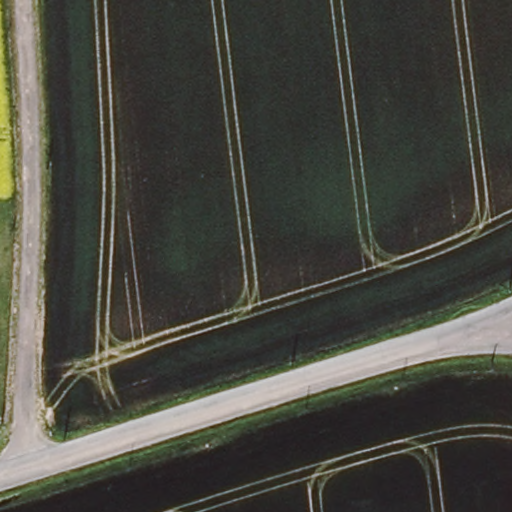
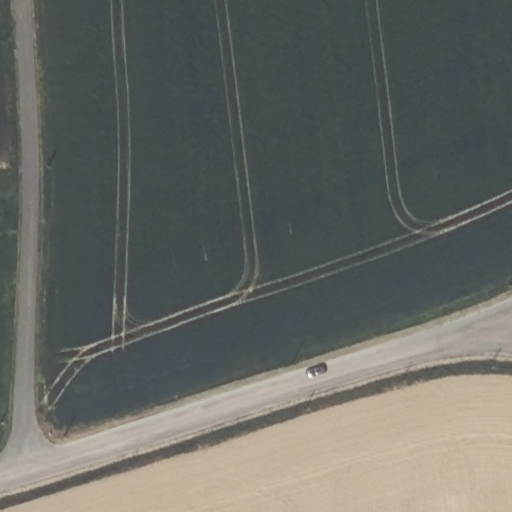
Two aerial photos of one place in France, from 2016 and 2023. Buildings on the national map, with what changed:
[]

